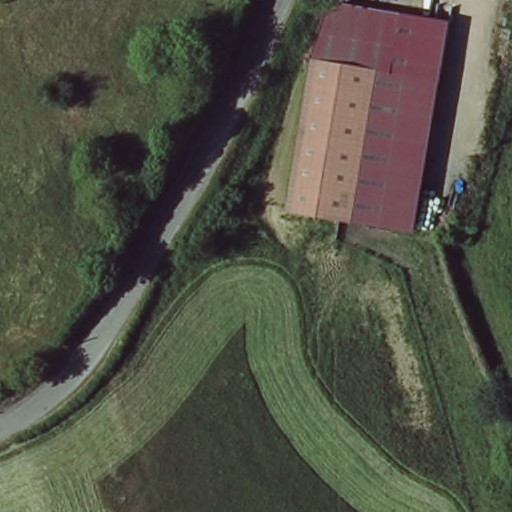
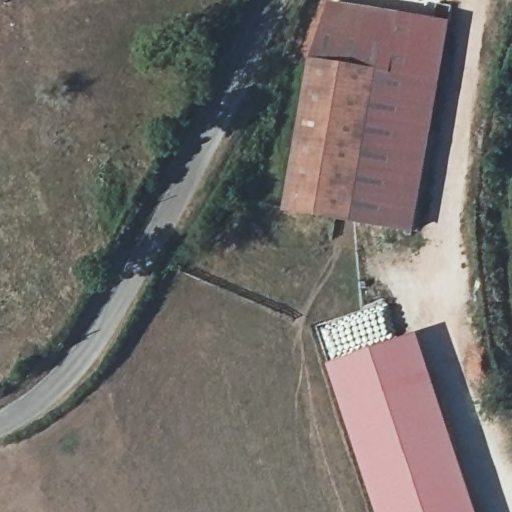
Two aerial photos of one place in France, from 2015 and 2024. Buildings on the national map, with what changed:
unchanged [(333,0),(338,0),(442,19),(431,84),(384,76),(318,64),(333,0)]
unchanged [(292,212),(306,133),(318,64),(384,76),(431,84),(411,200),(405,232),(359,224),(292,212)]
new [(478,512),(376,512),(328,365),(418,335),(478,512)]

